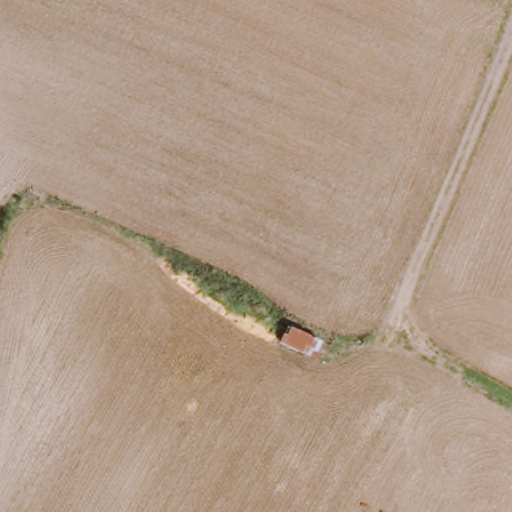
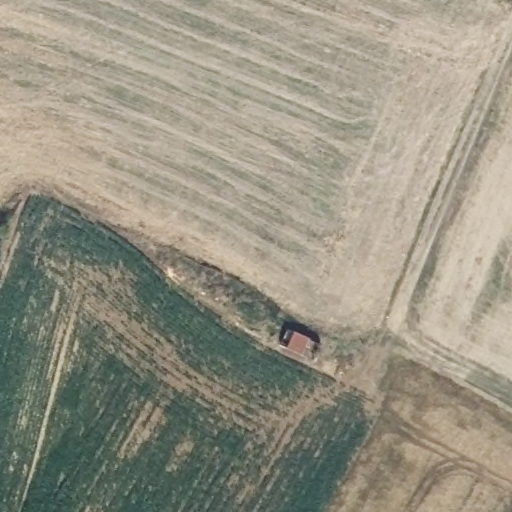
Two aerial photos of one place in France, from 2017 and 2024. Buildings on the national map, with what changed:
unchanged [(282,339),(290,322),(324,337),(315,355),(282,339)]

